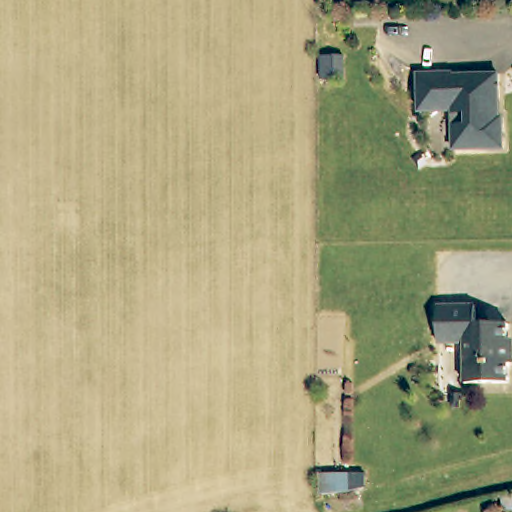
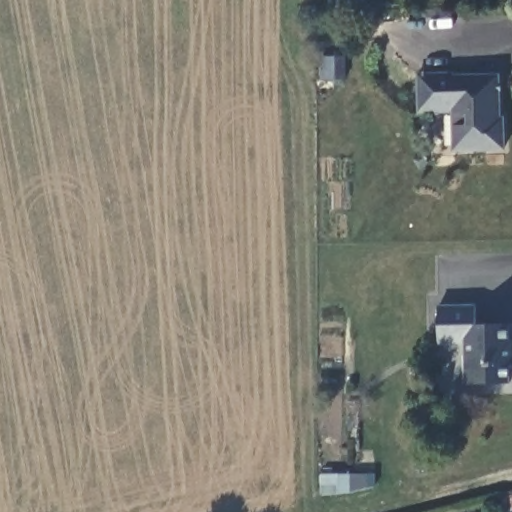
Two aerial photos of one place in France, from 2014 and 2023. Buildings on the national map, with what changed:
unchanged [(421,114),(419,64),(457,63),(457,76),(503,75),(503,100),(498,100),(499,115),(508,116),(508,150),(458,151),(457,112),(421,114)]
unchanged [(439,347),(438,307),(475,306),(476,325),(508,323),(508,343),(512,344),(512,365),(509,365),(509,383),(465,385),(465,346),(439,347)]

